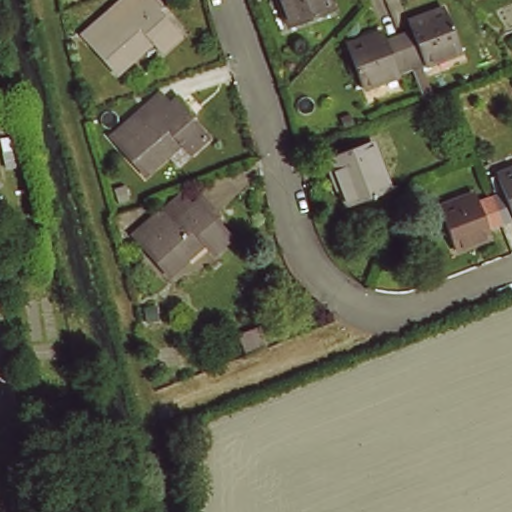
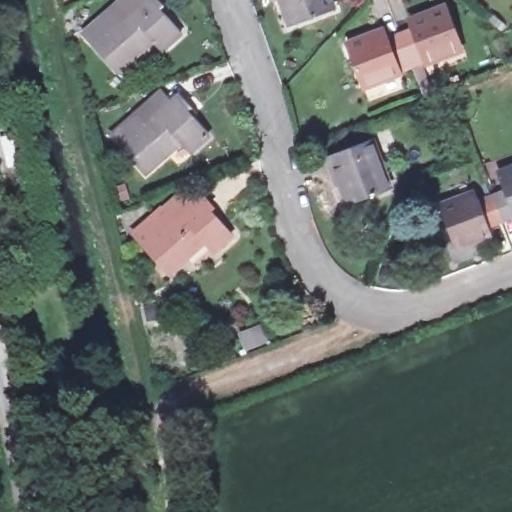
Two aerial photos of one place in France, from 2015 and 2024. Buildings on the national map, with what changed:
unchanged [(159,11),(183,37),(168,51),(158,41),(124,71),(88,31),(111,11),(124,0),(159,0),(164,6),(159,11)]
unchanged [(339,9),(296,25),(286,0),(336,0),(339,9)]
unchanged [(467,50),(432,64),(429,55),(402,67),(404,75),(367,90),(350,47),(389,32),(392,41),(419,31),(416,22),(449,7),(467,50)]
unchanged [(191,105),(186,109),(209,135),(194,149),(186,140),(151,170),(116,130),(143,108),(167,87),(176,97),(181,93),(191,105)]
unchanged [(392,189),(354,202),(341,169),(333,171),(327,159),(373,140),(392,189)]
unchanged [(497,225),(499,232),(461,248),(442,199),(481,182),(485,194),(509,184),(506,172),(512,170),(512,219),(497,225)]
unchanged [(208,214),(233,241),(221,254),(208,242),(173,272),(138,235),(162,215),(185,194),(195,204),(201,197),(213,210),(208,214)]

